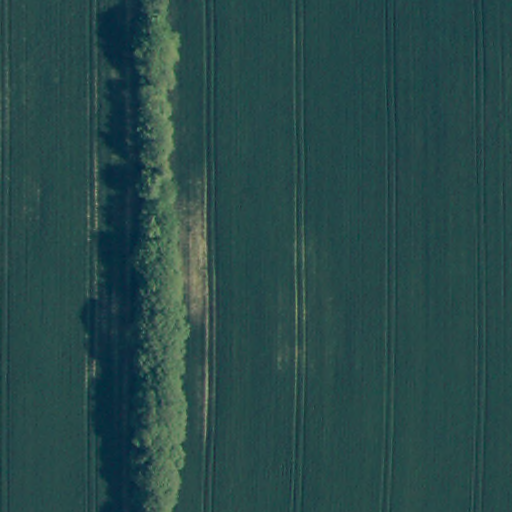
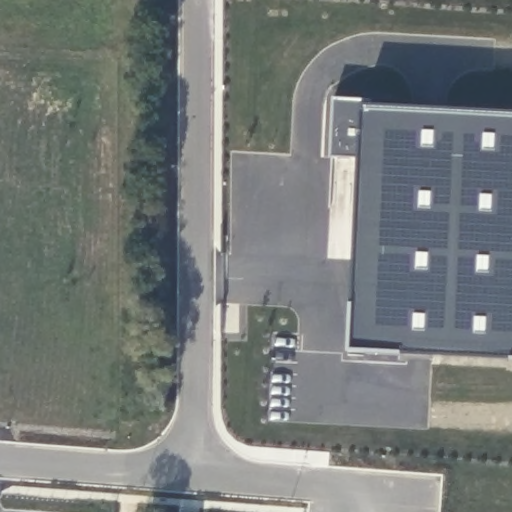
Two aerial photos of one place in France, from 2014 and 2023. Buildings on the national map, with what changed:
new [(334,94),(372,96),(372,101),(363,101),(360,155),(331,154),(334,94)]
new [(360,155),(363,101),(372,101),(512,110),(512,360),(350,351),(360,155)]

